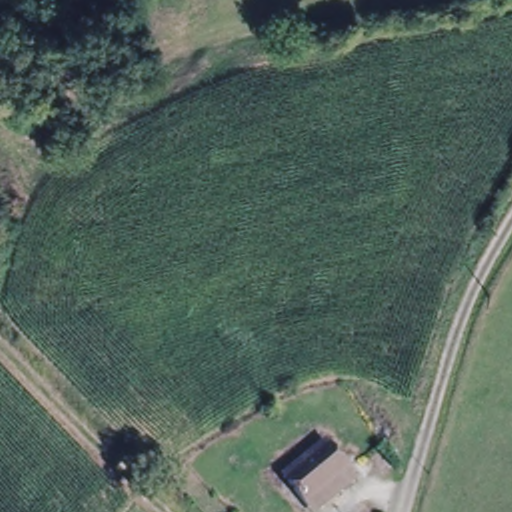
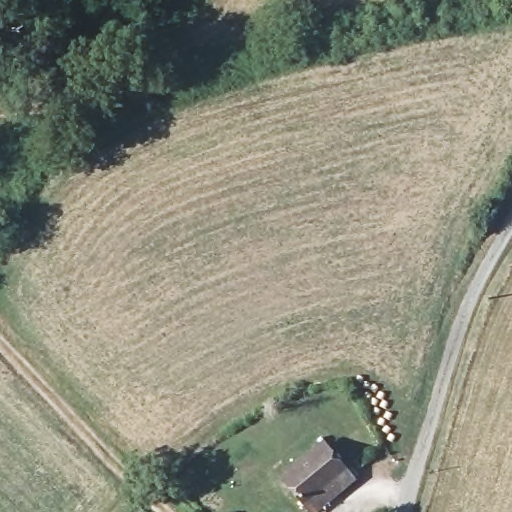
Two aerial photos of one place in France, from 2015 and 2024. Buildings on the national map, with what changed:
unchanged [(309,510),(283,479),(324,445),(358,486),(345,496),(325,512),(311,512),(309,510)]

